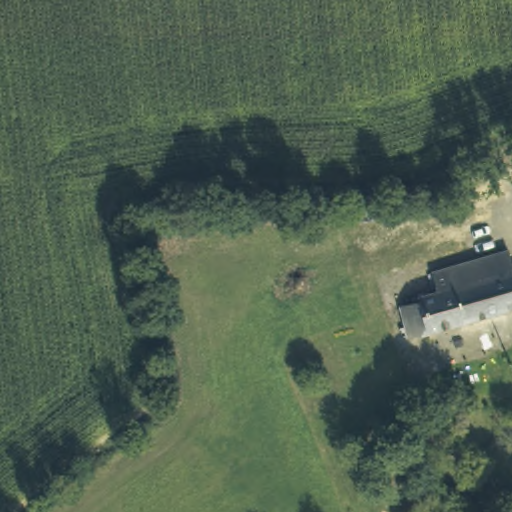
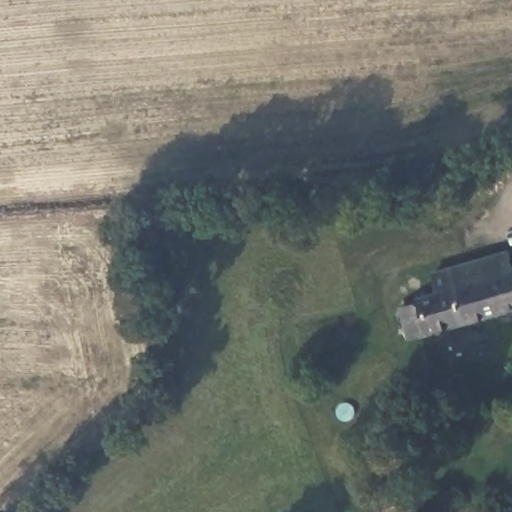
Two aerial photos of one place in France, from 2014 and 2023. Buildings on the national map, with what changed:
unchanged [(403,312),(419,306),(417,300),(437,294),(432,276),(490,259),(507,254),(512,267),(512,314),(409,339),(403,312)]

